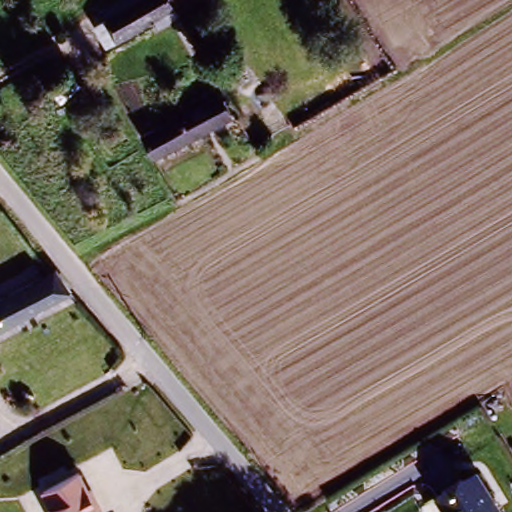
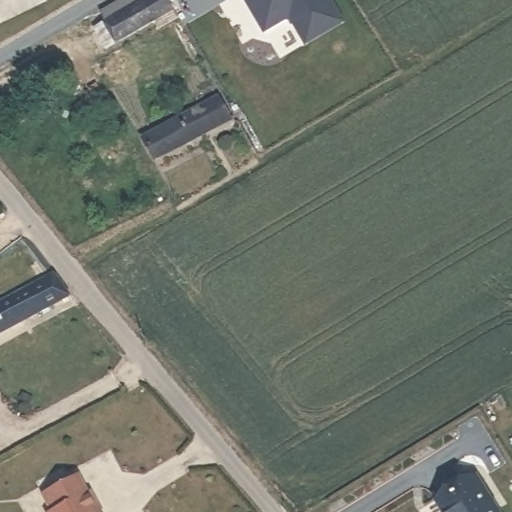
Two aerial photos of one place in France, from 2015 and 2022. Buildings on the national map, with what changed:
unchanged [(106,20),(129,8),(125,1),(127,0),(176,0),(180,6),(118,40),(106,20)]
new [(307,46),(291,19),(265,34),(245,0),(331,0),(345,24),(307,46)]
unchanged [(210,101),(223,120),(162,161),(149,142),(210,101)]
unchanged [(0,336),(0,300),(59,270),(72,297),(0,336)]
unchanged [(436,495),(475,472),(499,512),(446,512),(436,495)]
unchanged [(79,475),(98,512),(49,512),(42,496),(79,475)]

